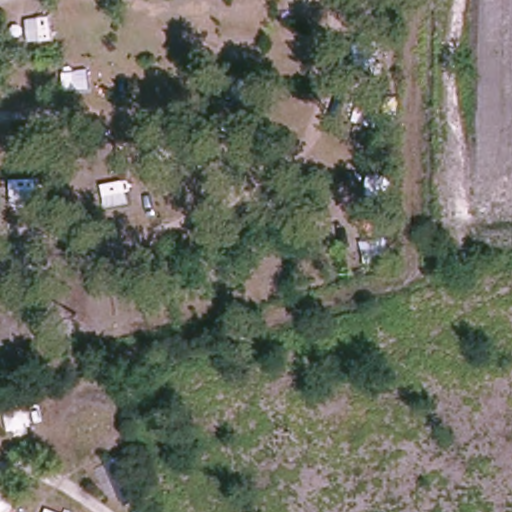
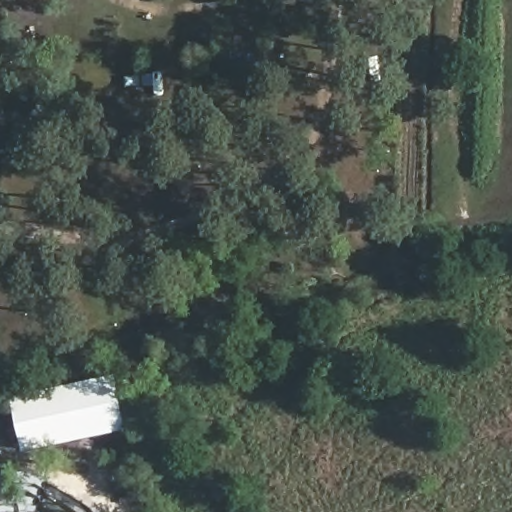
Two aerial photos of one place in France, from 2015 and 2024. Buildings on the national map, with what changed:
new [(117,379),(129,432),(24,455),(13,401),(117,379)]

